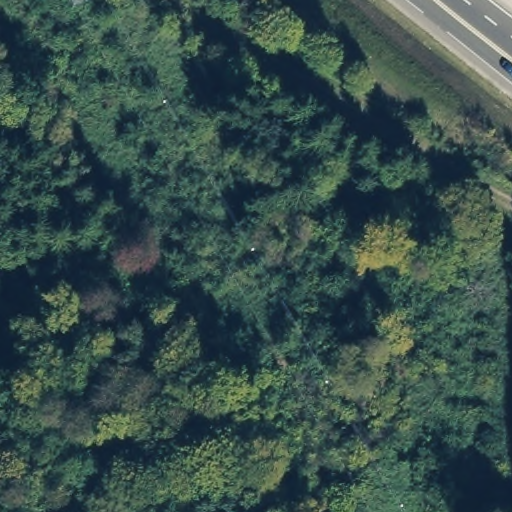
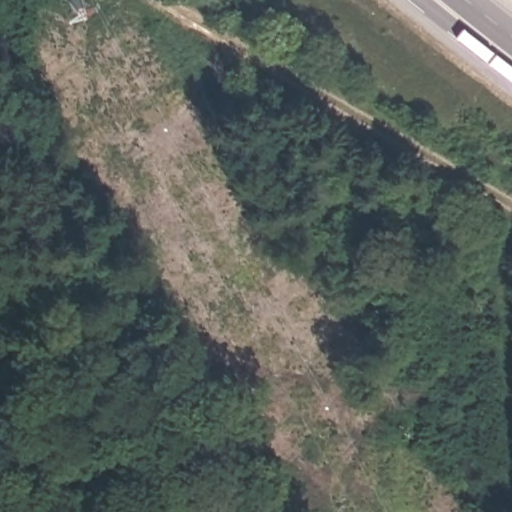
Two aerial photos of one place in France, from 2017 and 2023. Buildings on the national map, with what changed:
unchanged [(91,8),(74,16),(66,0),(87,0),(91,8)]

